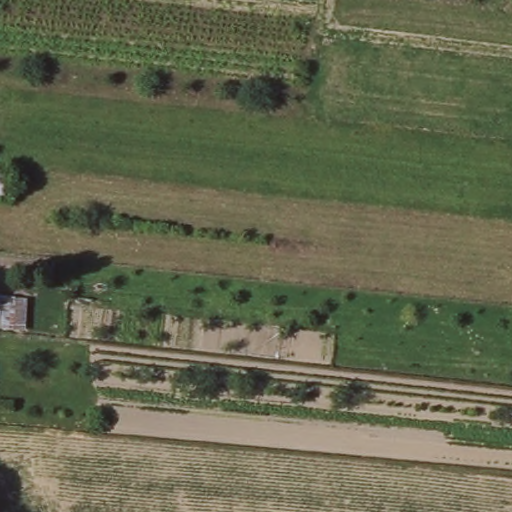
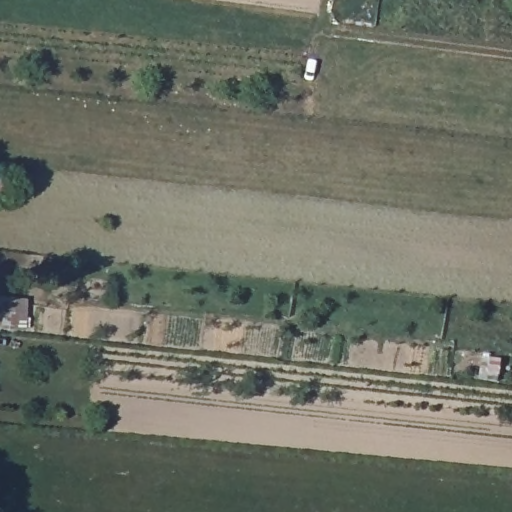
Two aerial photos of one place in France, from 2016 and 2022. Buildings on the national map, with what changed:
unchanged [(7,176),(6,197),(0,196),(0,175),(7,176)]

